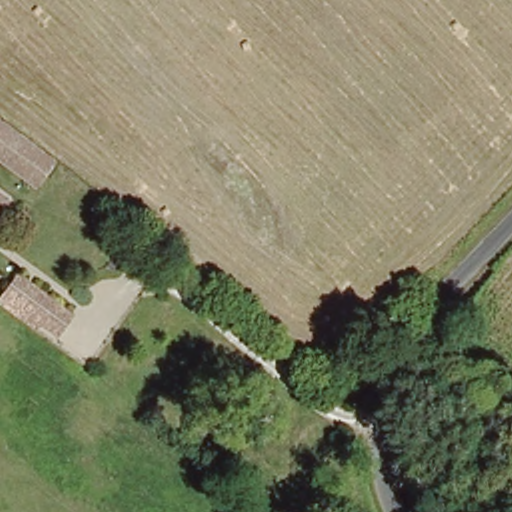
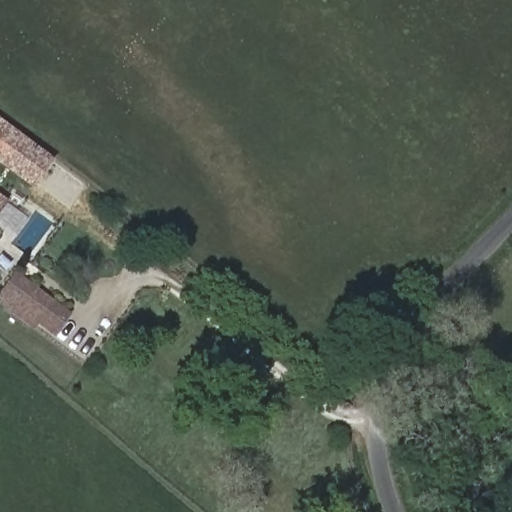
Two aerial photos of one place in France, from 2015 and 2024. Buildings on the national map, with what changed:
unchanged [(32,187),(0,163),(0,119),(55,159),(32,187)]
unchanged [(0,200),(2,201),(0,204),(0,200)]
unchanged [(26,316),(0,292),(16,275),(66,313),(50,335),(26,316)]

